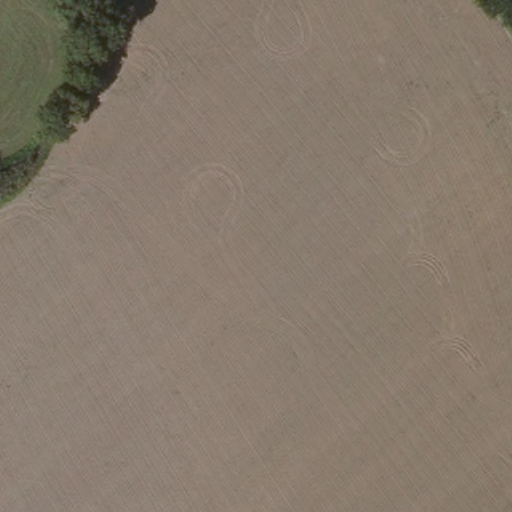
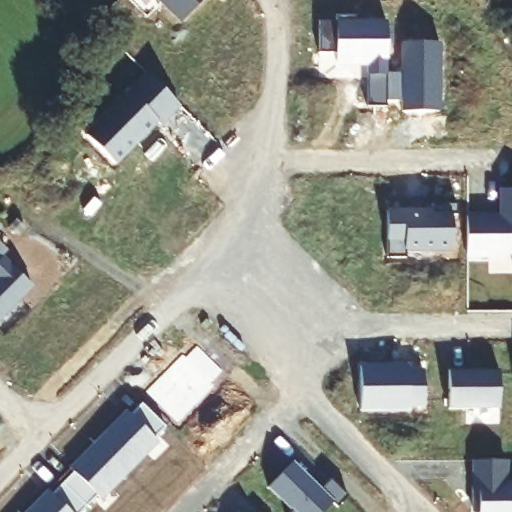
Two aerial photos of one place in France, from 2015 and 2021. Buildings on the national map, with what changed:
new [(162,0),(205,0),(184,21),(162,0)]
new [(321,21),(338,22),(338,15),(356,15),(356,21),(388,21),(388,75),(388,101),(388,107),(369,107),(369,60),(361,60),(361,62),(338,62),(338,53),(321,54),(321,21)]
new [(388,75),(404,74),(404,43),(441,43),(441,112),(404,112),(404,101),(388,101),(388,75)]
new [(150,72),(183,103),(163,122),(159,120),(118,162),(89,135),(150,72)]
new [(468,214),(503,214),(503,187),(512,187),(512,252),(491,252),(491,255),(468,255),(468,214)]
new [(388,209),(406,209),(406,212),(434,212),(434,202),(458,202),(458,213),(453,213),(453,246),(429,245),(429,249),(406,249),(406,256),(388,256),(388,209)]
new [(0,234),(0,232),(1,233),(0,234)]
new [(6,256),(0,261),(0,241),(10,251),(6,256)]
new [(36,286),(1,321),(0,321),(0,261),(6,256),(36,286)]
new [(181,355),(184,357),(196,346),(221,371),(210,382),(213,386),(176,422),(145,392),(181,355)]
new [(408,366),(408,370),(424,370),(425,405),(409,405),(409,410),(361,411),(361,367),(408,366)]
new [(501,369),(501,408),(451,408),(451,369),(501,369)]
new [(53,493),(74,471),(71,467),(128,410),(131,413),(143,402),(166,425),(155,437),(159,440),(102,498),(99,495),(81,512),(27,512),(49,490),(53,493)]
new [(476,462),(506,461),(507,485),(512,484),(512,512),(476,512),(476,486),(476,462)]
new [(294,462),(321,488),(331,478),(349,495),(339,507),(334,502),(324,512),(290,512),(293,510),(269,486),(294,462)]

